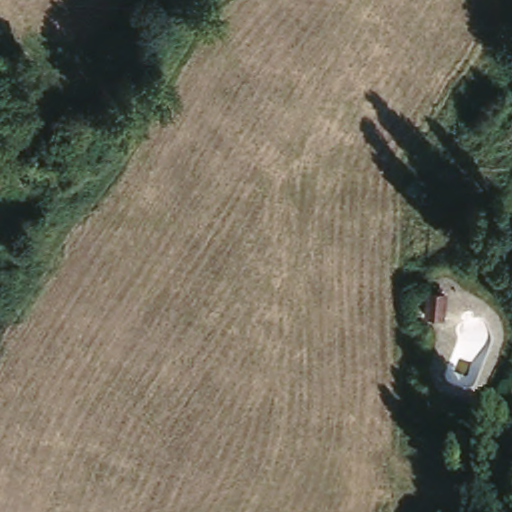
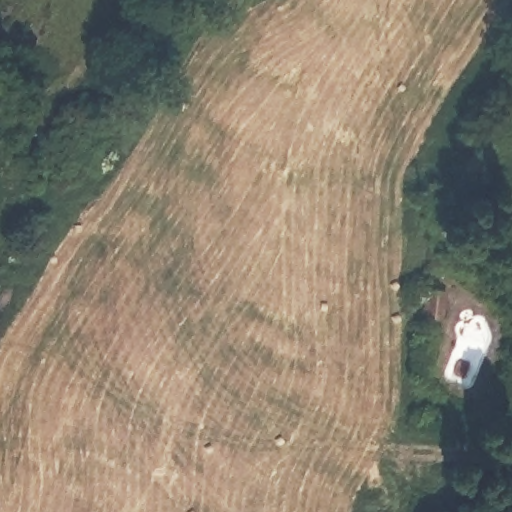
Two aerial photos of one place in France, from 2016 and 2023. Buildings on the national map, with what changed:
unchanged [(444,286),(442,320),(424,319),(425,285),(444,286)]

